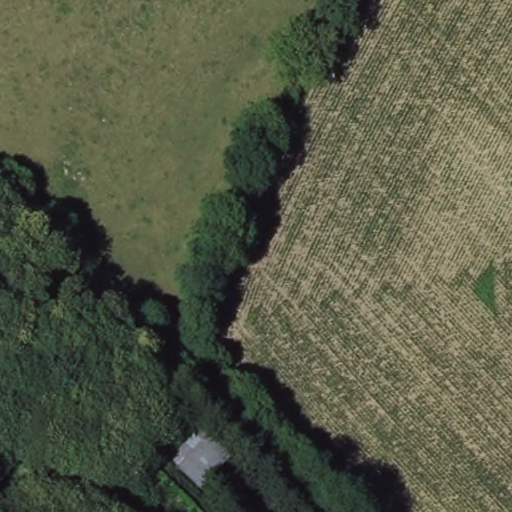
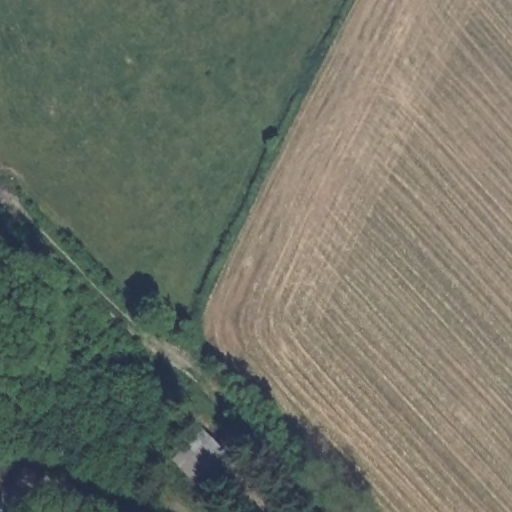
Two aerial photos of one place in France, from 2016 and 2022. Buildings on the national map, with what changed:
unchanged [(205,492),(176,458),(205,427),(238,461),(205,492)]

